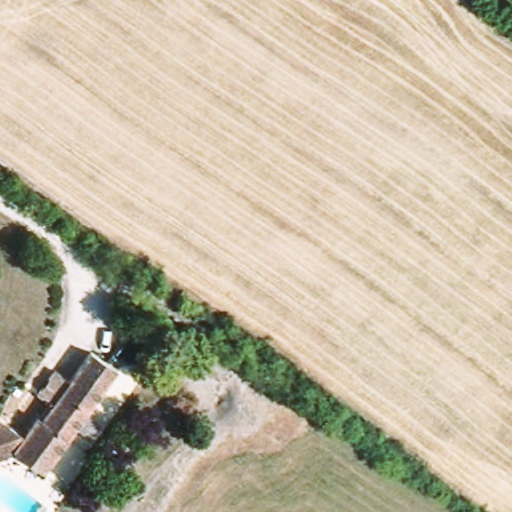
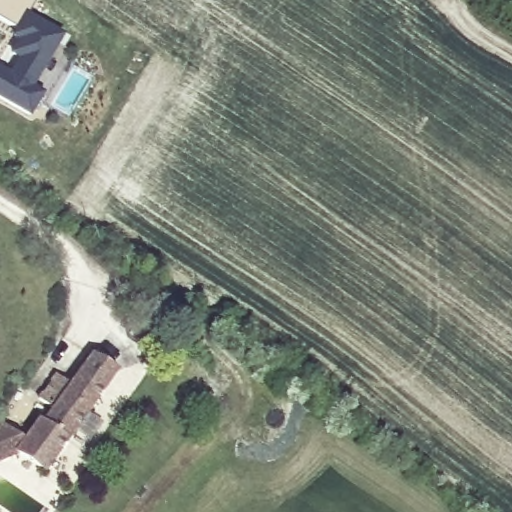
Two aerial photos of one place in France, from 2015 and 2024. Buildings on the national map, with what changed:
new [(32,90),(43,98),(30,119),(0,100),(0,69),(10,75),(19,61),(12,54),(19,43),(13,39),(19,31),(0,20),(0,0),(30,0),(35,3),(27,16),(64,37),(32,90)]
unchanged [(5,428),(20,438),(34,416),(43,423),(56,404),(40,395),(56,371),(72,380),(91,353),(120,371),(50,477),(10,452),(0,457),(0,424),(5,428)]

